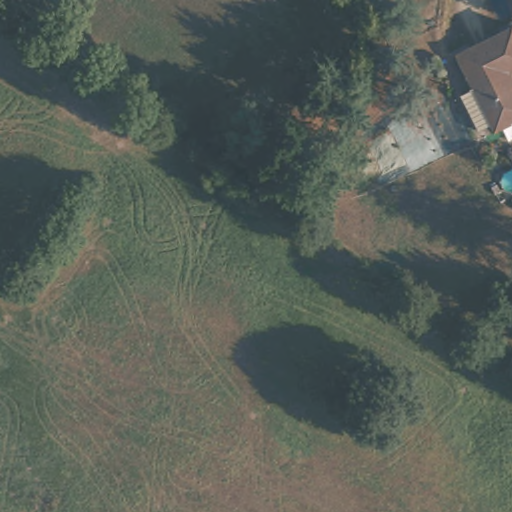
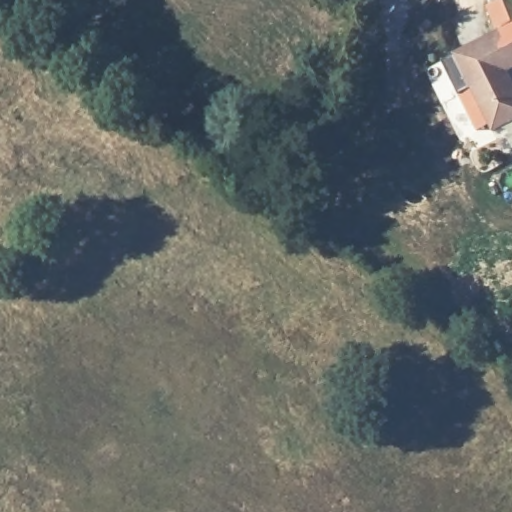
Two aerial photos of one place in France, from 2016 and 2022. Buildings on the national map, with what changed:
unchanged [(494,131),(456,56),(511,28),(512,32),(512,68),(504,72),(512,90),(512,122),(494,131)]

